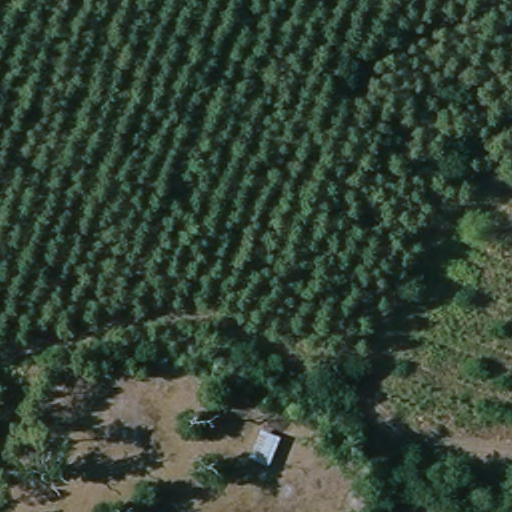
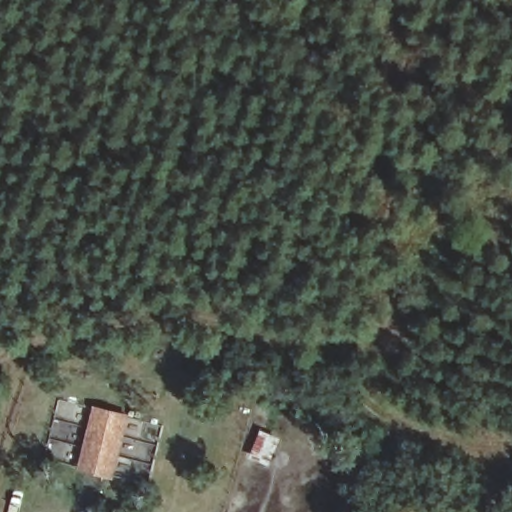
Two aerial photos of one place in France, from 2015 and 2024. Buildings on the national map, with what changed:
new [(130,415),(113,478),(78,469),(94,406),(130,415)]

